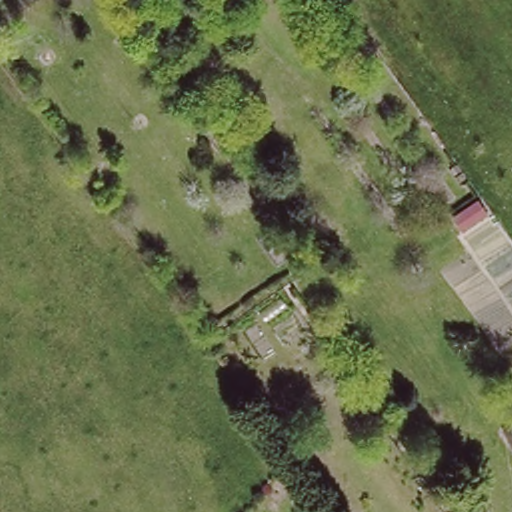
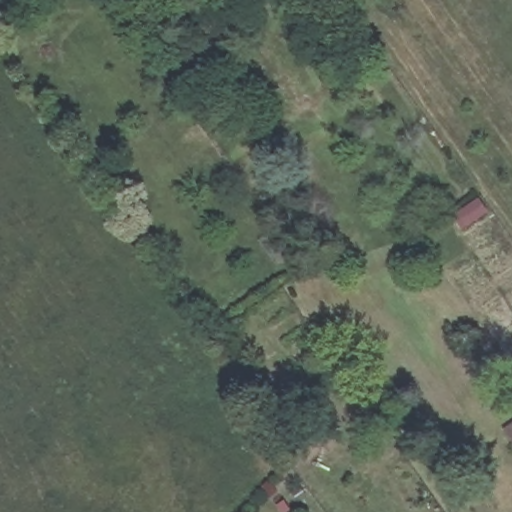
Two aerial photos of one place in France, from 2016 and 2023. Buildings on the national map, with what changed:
unchanged [(483,206),(460,222),(453,212),(476,195),(483,206)]
unchanged [(512,427),(512,439),(507,431),(512,427)]

